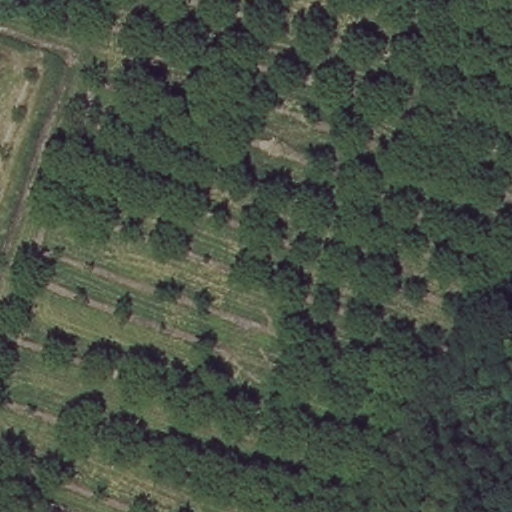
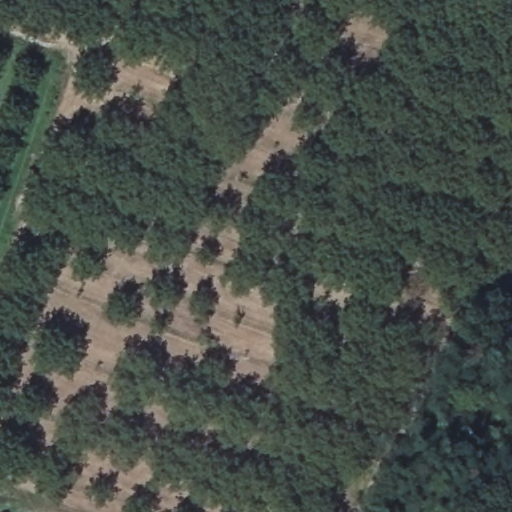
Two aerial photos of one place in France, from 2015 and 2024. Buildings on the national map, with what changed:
unchanged [(469,302),(459,320),(437,308),(447,290),(469,302)]

